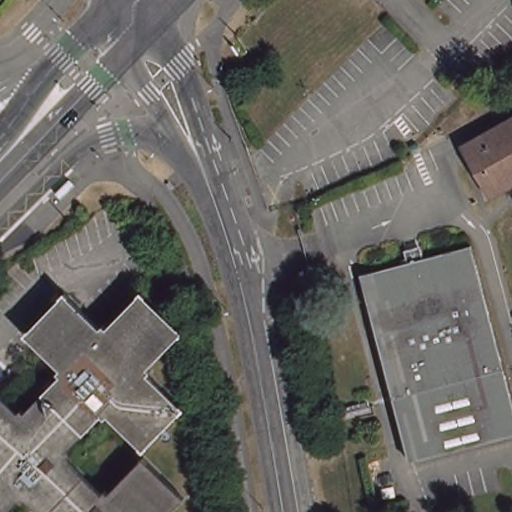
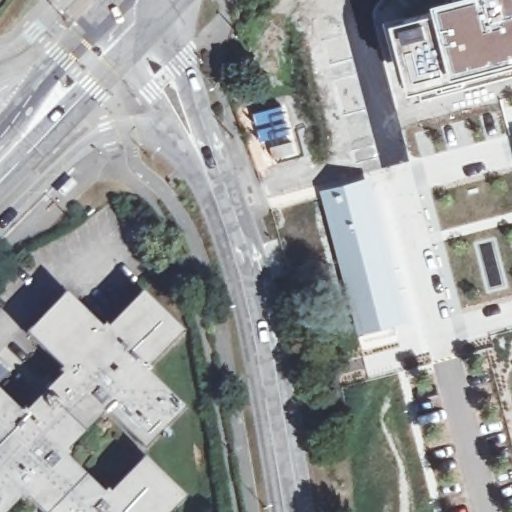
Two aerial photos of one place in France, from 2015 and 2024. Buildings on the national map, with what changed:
new [(433,0),(512,0),(512,63),(479,71),(450,81),(409,91),(390,20),(434,8),(433,0)]
demolished [(492,191),(466,146),(504,125),(512,121),(512,180),(492,191)]
new [(368,175),(383,229),(407,320),(356,334),(319,188),(368,175)]
demolished [(366,275),(473,246),(512,396),(512,432),(415,455),(366,275)]
unchanged [(27,412),(30,415),(65,378),(63,376),(66,372),(31,338),(70,297),(105,331),(108,328),(111,331),(146,296),(174,323),(187,335),(179,343),(153,371),(156,375),(153,378),(188,411),(148,452),(113,419),(109,422),(107,419),(72,455),(75,458),(71,461),(108,496),(111,493),(114,496),(149,461),(189,501),(178,512),(41,512),(31,503),(28,506),(24,503),(16,512),(0,512),(0,392),(24,415),(27,412)]

